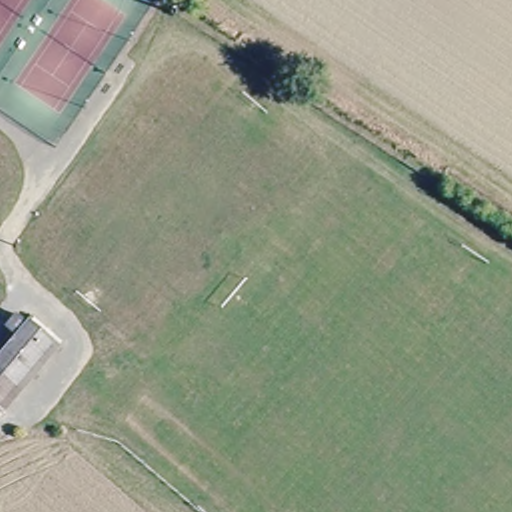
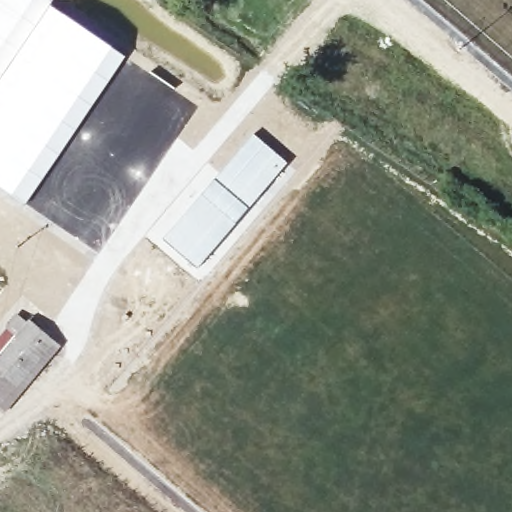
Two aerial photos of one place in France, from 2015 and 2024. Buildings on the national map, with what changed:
new [(55,0),(52,5),(126,56),(25,205),(0,188),(0,0),(55,0)]
new [(176,219),(216,176),(253,134),(287,162),(200,268),(204,271),(199,278),(147,236),(166,212),(176,219)]
unchanged [(22,385),(4,407),(0,404),(0,350),(16,331),(7,323),(17,311),(26,319),(27,317),(52,339),(58,343),(22,385)]

